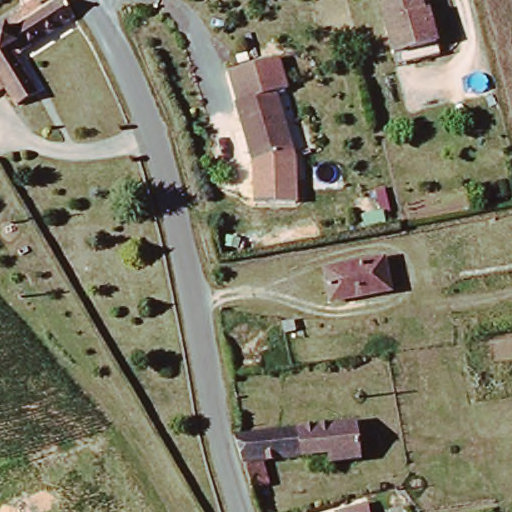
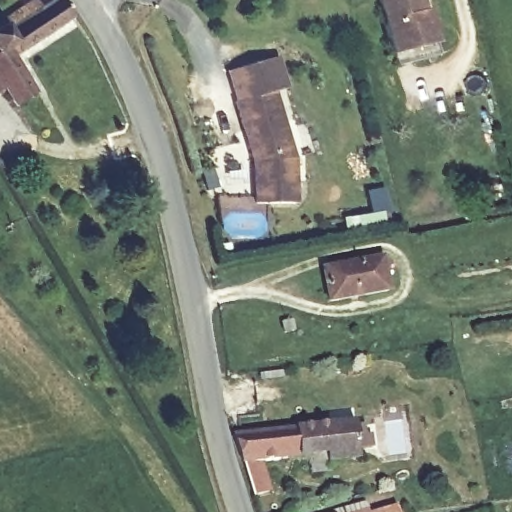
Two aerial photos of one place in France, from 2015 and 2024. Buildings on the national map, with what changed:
unchanged [(399,69),(381,0),(423,0),(432,36),(438,34),(441,55),(399,69)]
unchanged [(22,15),(27,23),(58,2),(69,17),(14,56),(40,103),(17,115),(6,96),(0,101),(0,29),(22,15)]
unchanged [(251,160),(226,71),(279,56),(290,90),(277,93),(295,159),(296,203),(252,204),(251,160)]
unchanged [(321,267),(385,255),(392,295),(328,308),(321,267)]
unchanged [(356,423),(361,451),(299,460),(296,430),(356,423)]
unchanged [(296,430),(299,460),(245,467),(234,437),(240,436),(296,430)]

